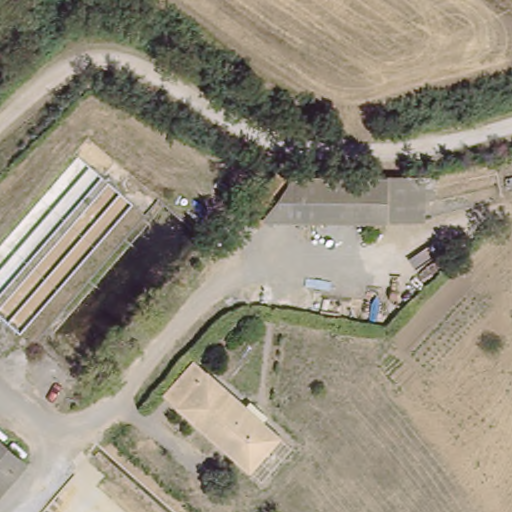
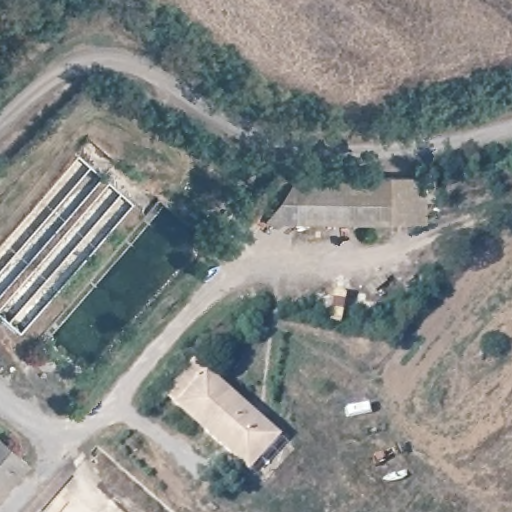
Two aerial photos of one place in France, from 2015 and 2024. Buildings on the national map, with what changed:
unchanged [(290,179),(388,177),(426,178),(426,219),(385,219),(267,222),(290,179)]
unchanged [(213,366),(285,435),(248,480),(176,406),(213,366)]
unchanged [(0,435),(30,458),(0,494),(0,435)]

